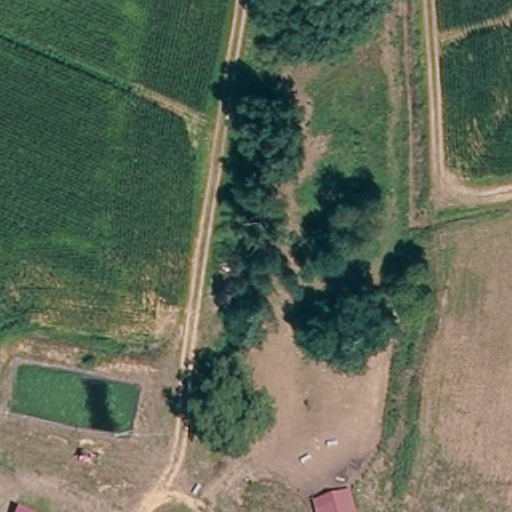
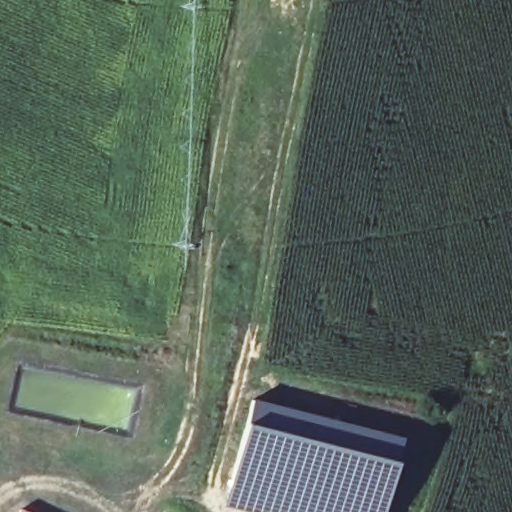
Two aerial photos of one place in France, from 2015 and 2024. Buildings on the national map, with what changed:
new [(405,436),(393,491),(387,512),(246,512),(224,506),(252,397),(405,436)]
demolished [(352,485),(359,512),(320,512),(316,498),(352,485)]

